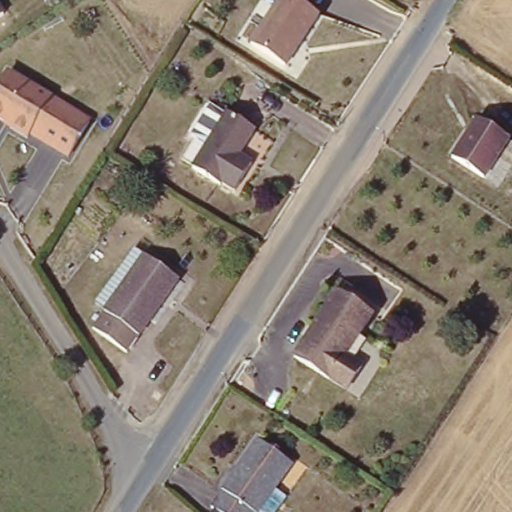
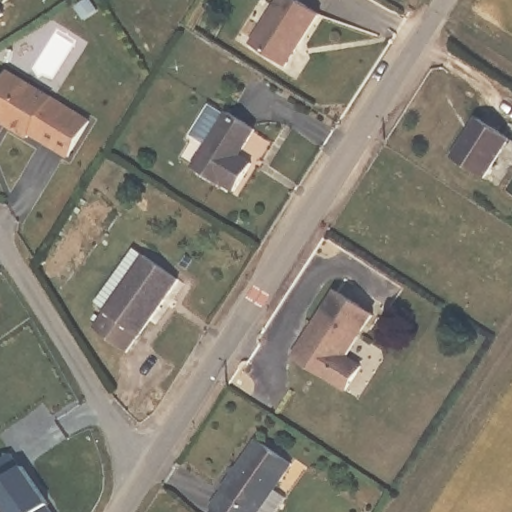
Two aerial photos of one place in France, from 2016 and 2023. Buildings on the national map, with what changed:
unchanged [(11,10),(0,17),(0,0),(5,0),(11,10)]
unchanged [(280,0),(297,0),(318,12),(286,68),(252,48),(280,0)]
unchanged [(75,153),(36,129),(34,133),(17,123),(18,121),(0,109),(0,93),(17,68),(97,119),(75,153)]
unchanged [(223,113),(254,131),(237,156),(252,165),(234,191),(222,183),(219,187),(188,166),(223,113)]
unchanged [(511,138),(487,179),(451,155),(476,114),(511,138)]
unchanged [(105,306),(97,300),(134,252),(182,286),(127,356),(89,328),(105,306)]
unchanged [(340,294),(375,318),(349,355),(365,367),(349,392),(298,358),(340,294)]
unchanged [(221,491),(255,441),(292,464),(259,512),(216,512),(213,511),(225,494),(221,491)]
new [(53,512),(8,512),(0,501),(0,458),(9,452),(53,512)]

